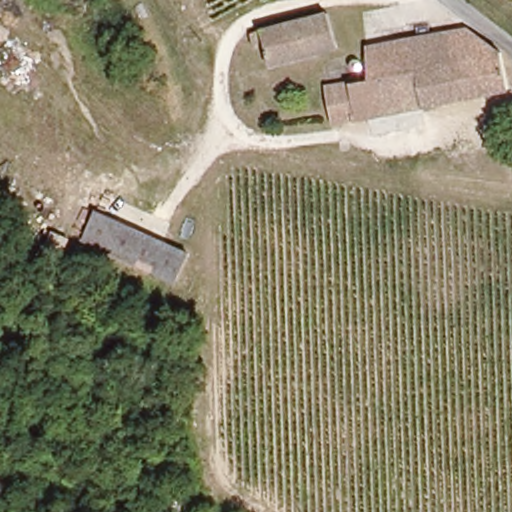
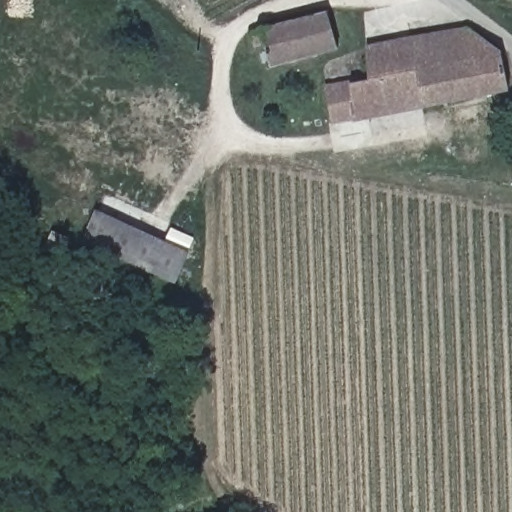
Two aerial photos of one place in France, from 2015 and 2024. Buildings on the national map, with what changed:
unchanged [(250,35),(325,13),(335,47),(273,65),(267,45),(254,49),(250,35)]
unchanged [(326,84),(367,77),(363,45),(469,30),(496,51),(503,94),(351,116),(332,120),(326,84)]
unchanged [(187,252),(170,287),(79,245),(96,209),(187,252)]

